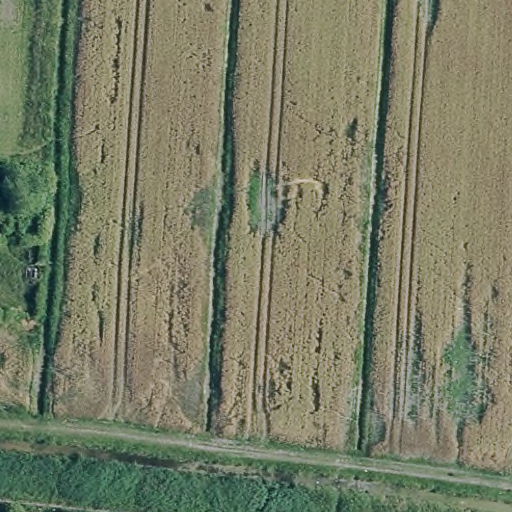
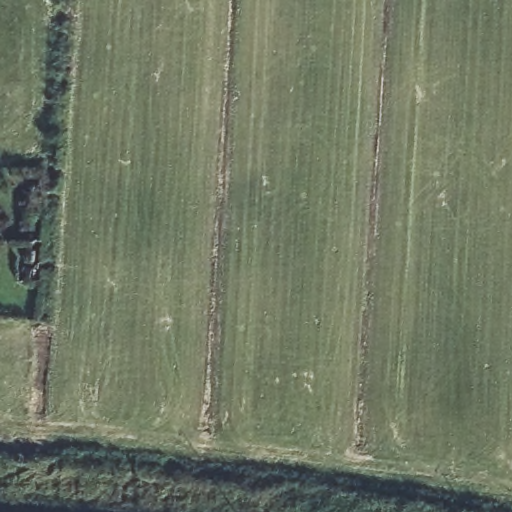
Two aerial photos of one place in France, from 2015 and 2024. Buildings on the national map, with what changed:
[]

